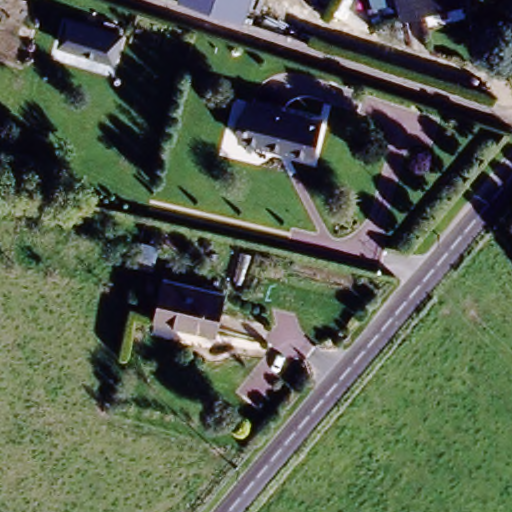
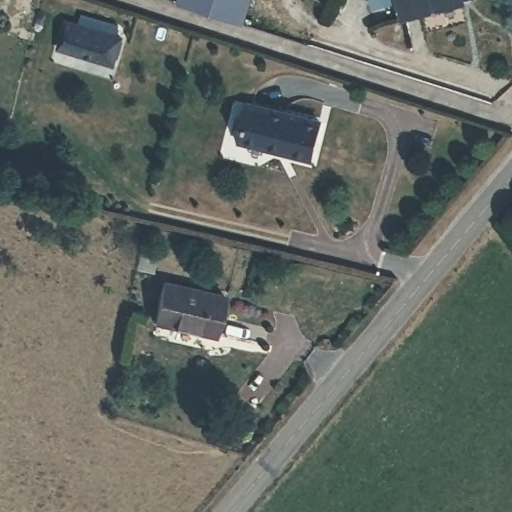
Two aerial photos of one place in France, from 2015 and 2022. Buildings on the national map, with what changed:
unchanged [(252,25),(175,1),(175,0),(260,0),(252,25)]
unchanged [(369,0),(390,0),(371,6),(369,0)]
unchanged [(400,16),(396,0),(457,0),(400,16)]
unchanged [(124,36),(117,57),(69,43),(75,21),(124,36)]
unchanged [(318,125),(310,162),(237,144),(247,106),(318,125)]
unchanged [(227,300),(216,340),(156,325),(165,285),(227,300)]

